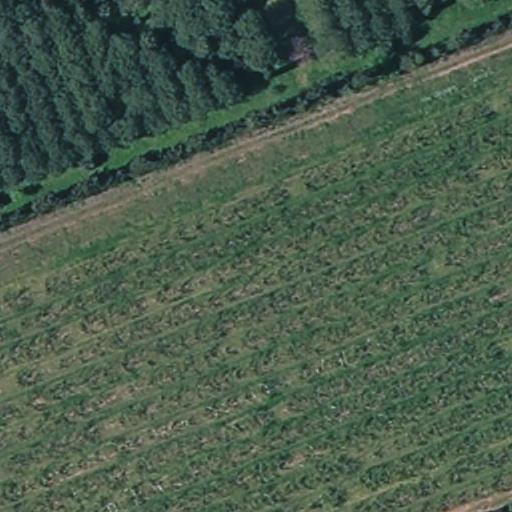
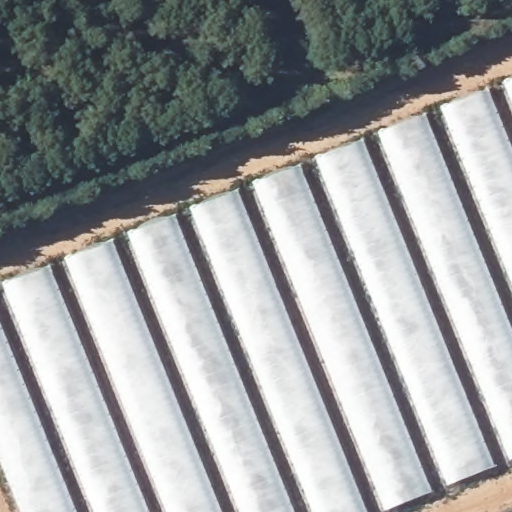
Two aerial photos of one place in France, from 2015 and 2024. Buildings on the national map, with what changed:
new [(26,512),(0,447),(0,285),(512,79),(512,460),(382,512),(26,512)]

